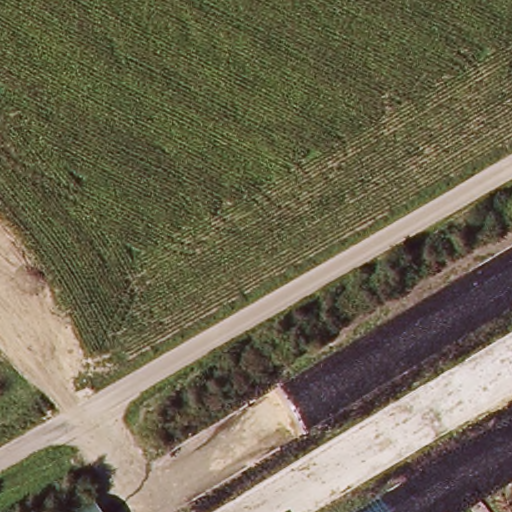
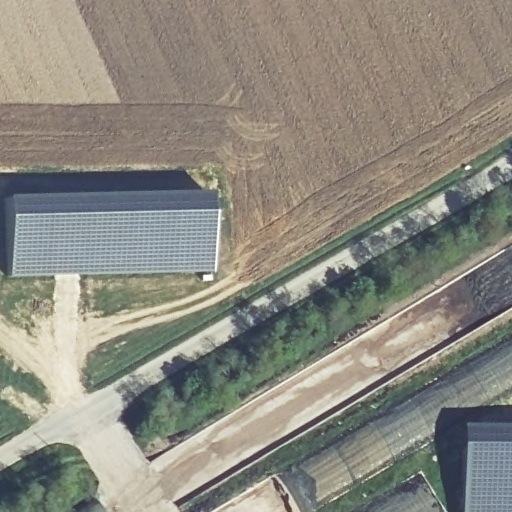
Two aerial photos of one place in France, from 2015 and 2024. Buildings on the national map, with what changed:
new [(207,190),(210,273),(52,275),(5,277),(2,194),(207,190)]
new [(460,430),(512,430),(512,512),(460,512),(460,430)]
unchanged [(92,506),(96,512),(80,512),(92,506)]

